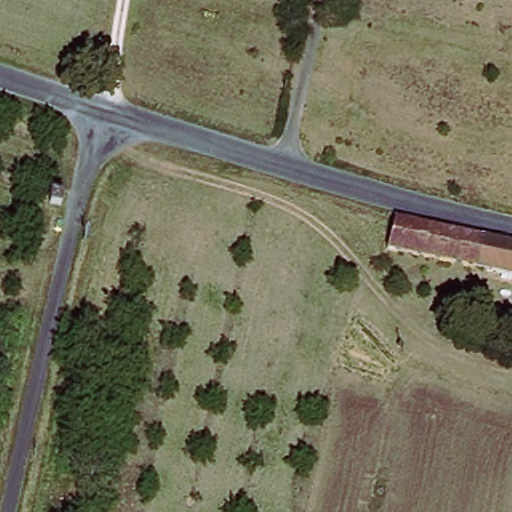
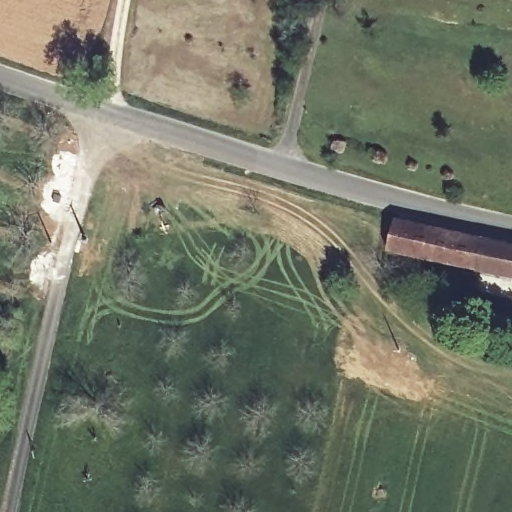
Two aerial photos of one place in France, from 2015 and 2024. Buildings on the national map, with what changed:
unchanged [(512,246),(512,281),(479,272),(404,253),(387,248),(395,216),(479,238),(512,246)]

